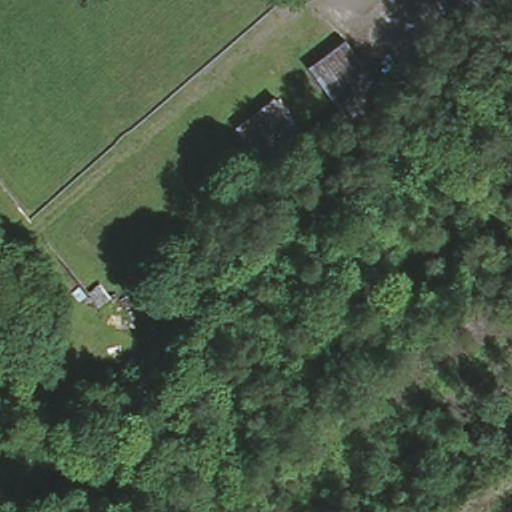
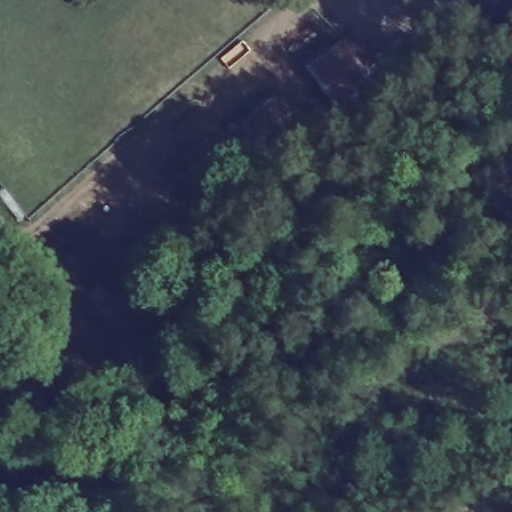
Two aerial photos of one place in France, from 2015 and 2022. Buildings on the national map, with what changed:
unchanged [(439,0),(491,0),(496,10),(463,34),(439,0)]
unchanged [(348,127),(306,68),(342,40),(382,95),(348,127)]
unchanged [(311,146),(274,175),(231,125),(271,92),(311,146)]

